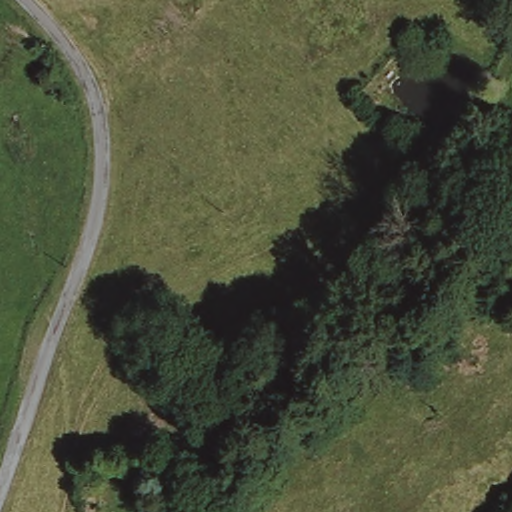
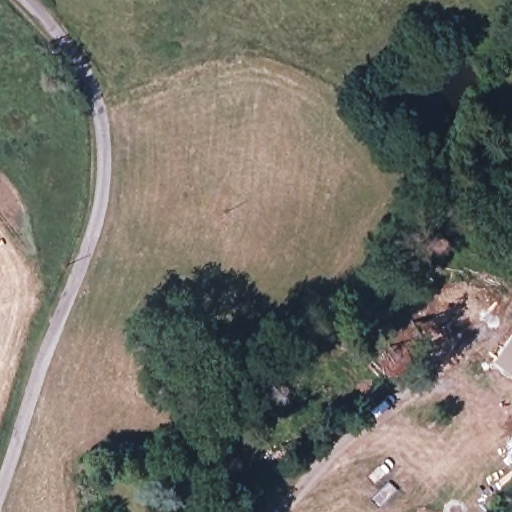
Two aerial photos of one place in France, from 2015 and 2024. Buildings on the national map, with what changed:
new [(512,377),(494,363),(512,337),(512,377)]

